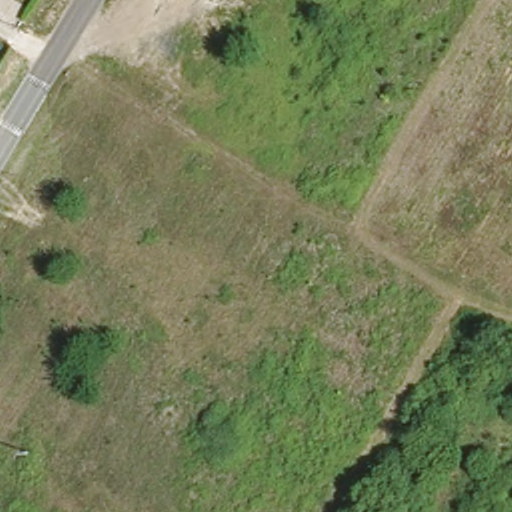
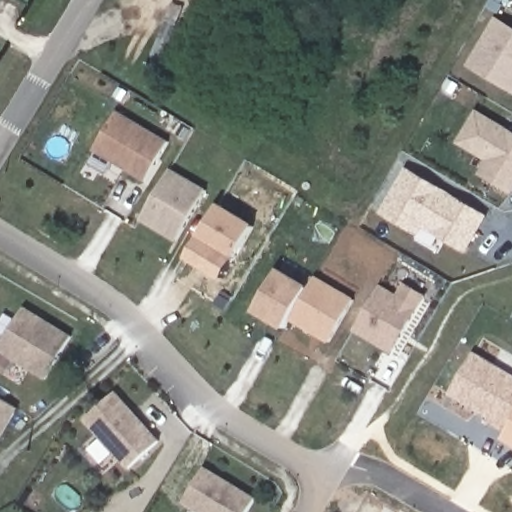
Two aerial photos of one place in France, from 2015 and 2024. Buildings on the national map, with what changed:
new [(512,29),(512,86),(510,90),(465,62),(493,17),(512,29)]
new [(512,131),(512,178),(506,189),(475,170),(483,157),(454,138),(472,107),(512,131)]
new [(94,153),(118,112),(169,143),(147,183),(94,153)]
new [(202,190),(171,240),(136,218),(166,168),(202,190)]
new [(485,217),(464,254),(423,230),(417,237),(378,212),(404,168),(485,217)]
new [(246,222),(225,259),(194,239),(213,203),(246,222)]
new [(304,283),(280,323),(250,305),(274,265),(304,283)]
new [(310,273),(348,297),(323,338),(285,315),(310,273)]
new [(406,284),(428,298),(392,355),(355,332),(381,285),(397,296),(406,284)]
new [(0,352),(0,349),(26,308),(74,336),(47,381),(0,352)]
new [(475,352),(512,374),(512,436),(447,398),(475,352)]
new [(130,470),(85,420),(117,392),(161,443),(130,470)]
new [(0,398),(20,410),(0,441),(0,398)]
new [(193,512),(184,506),(205,467),(257,498),(249,512),(193,512)]

